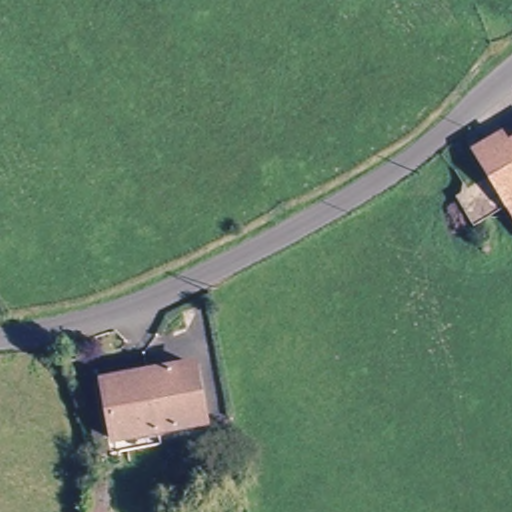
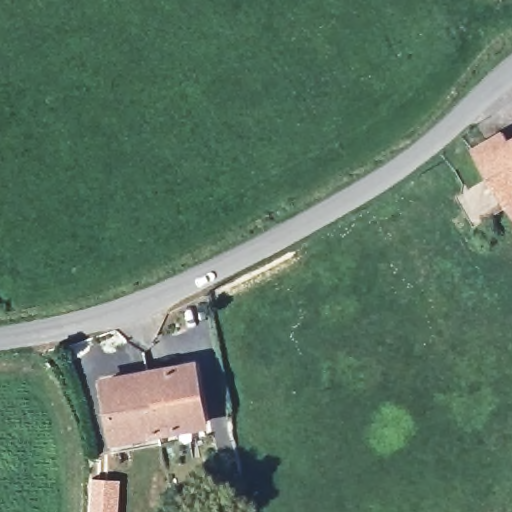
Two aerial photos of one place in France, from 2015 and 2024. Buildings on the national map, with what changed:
unchanged [(472,219),(455,189),(485,172),(471,148),(501,130),(506,139),(512,137),(512,195),(501,201),(472,219)]
unchanged [(512,221),(501,201),(512,195),(512,221)]
unchanged [(205,430),(164,434),(147,364),(195,358),(205,430)]
unchanged [(117,440),(108,369),(147,364),(164,434),(117,440)]
new [(89,512),(91,477),(120,479),(117,512),(89,512)]

